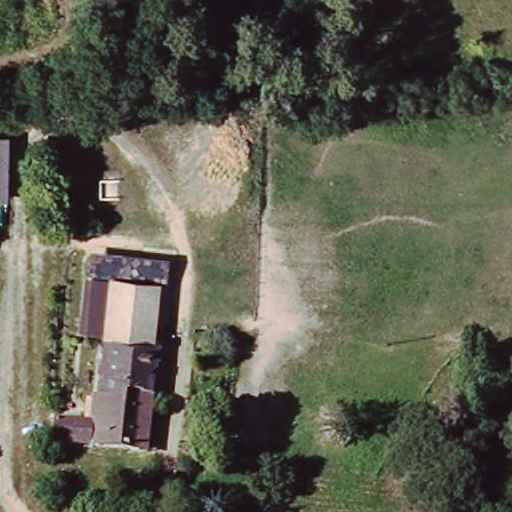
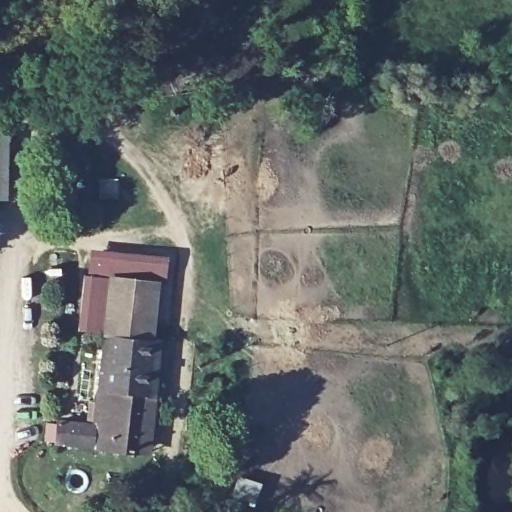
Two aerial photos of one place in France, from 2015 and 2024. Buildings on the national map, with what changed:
unchanged [(0,136),(7,136),(6,196),(0,196),(0,136)]
unchanged [(140,450),(57,442),(59,422),(95,425),(105,332),(91,331),(96,288),(99,261),(159,268),(158,280),(151,338),(160,339),(154,398),(149,451),(140,450)]

